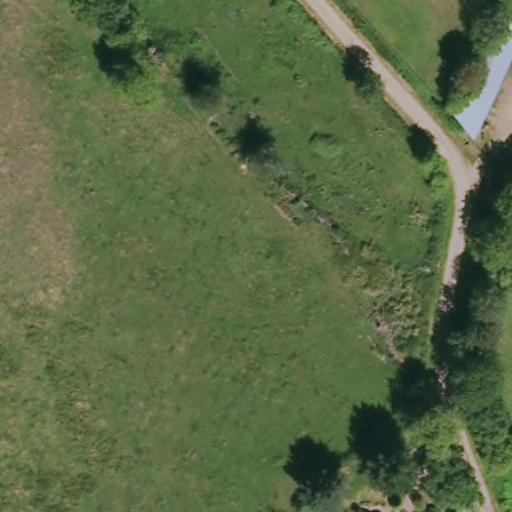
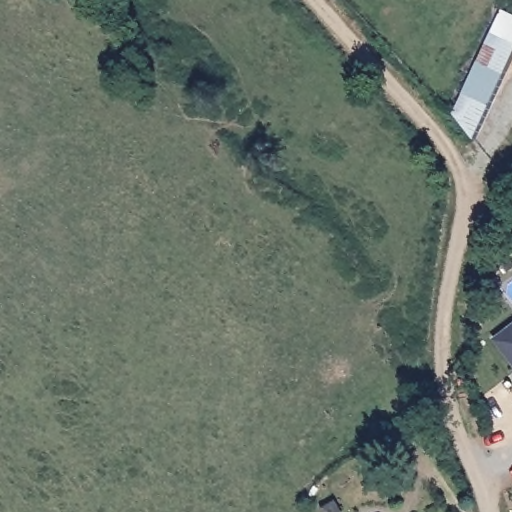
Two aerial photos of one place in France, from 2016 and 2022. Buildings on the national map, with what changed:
unchanged [(508,9),(512,12),(512,65),(479,139),(447,109),(508,9)]
new [(494,339),(512,325),(512,362),(494,339)]

